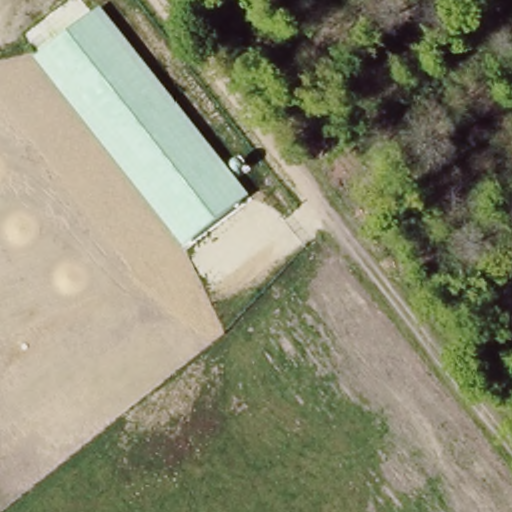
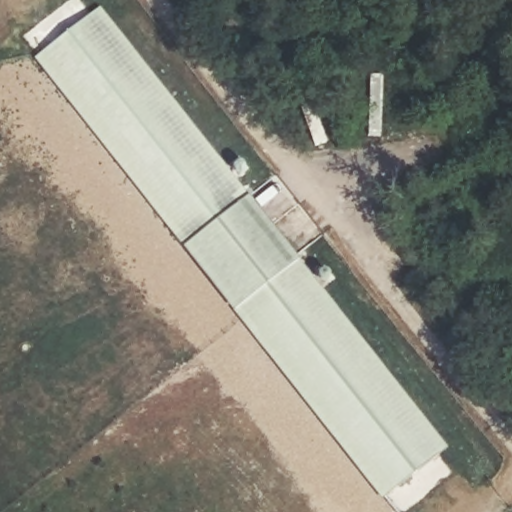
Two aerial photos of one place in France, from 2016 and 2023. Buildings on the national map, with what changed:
unchanged [(35,58),(100,6),(227,166),(237,158),(246,170),(236,178),(250,195),(184,244),(35,58)]
new [(384,499),(234,312),(182,246),(184,244),(250,195),(302,261),(450,449),(384,499)]

